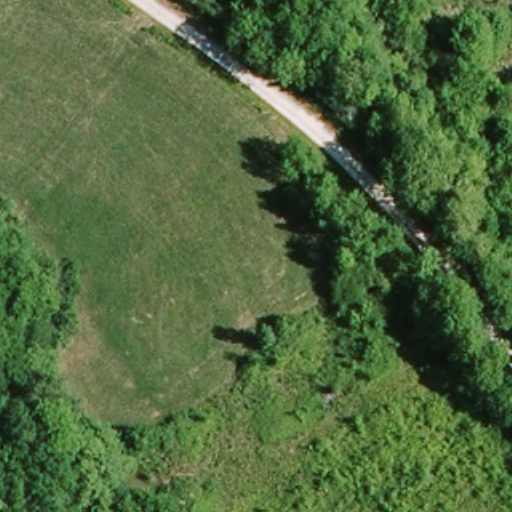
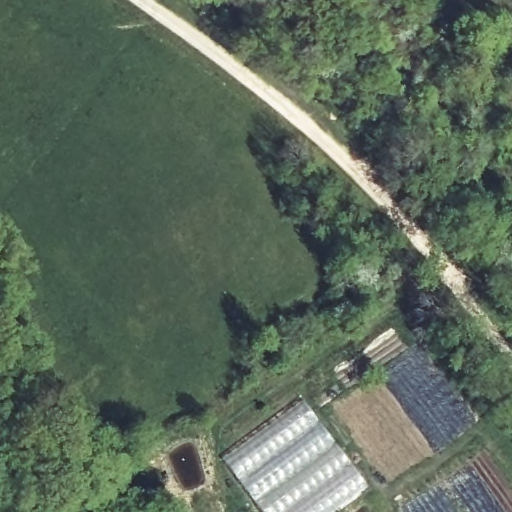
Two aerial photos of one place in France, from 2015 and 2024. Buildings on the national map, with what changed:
new [(301,395),(370,487),(337,512),(262,512),(220,457),(301,395)]

